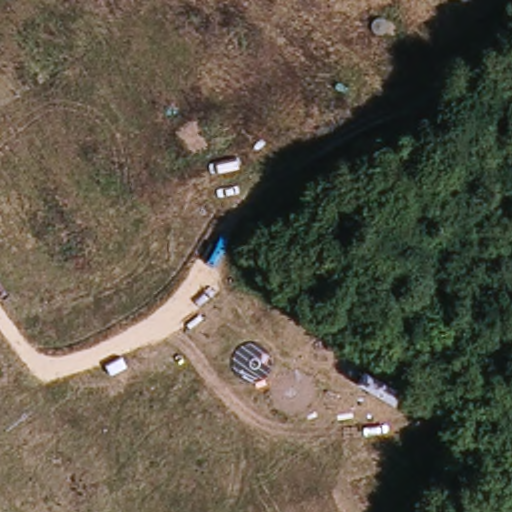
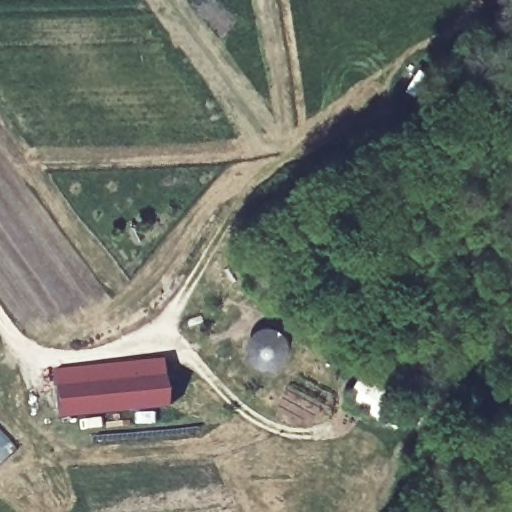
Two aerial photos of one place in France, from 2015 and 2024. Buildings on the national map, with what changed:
new [(53,370),(161,360),(167,409),(57,419),(53,370)]
new [(349,397),(364,368),(410,394),(429,405),(419,421),(403,412),(397,424),(349,397)]
new [(7,451),(0,458),(0,443),(7,451)]

